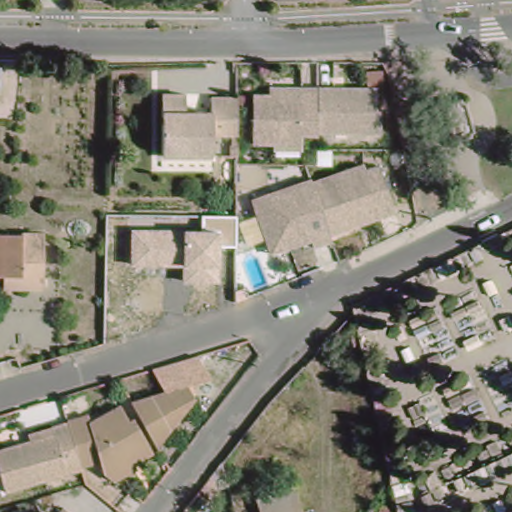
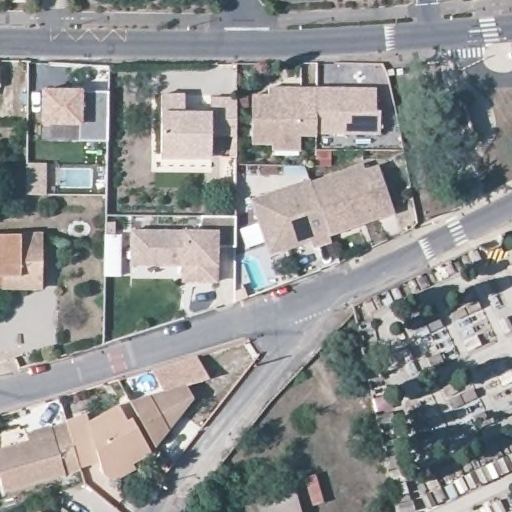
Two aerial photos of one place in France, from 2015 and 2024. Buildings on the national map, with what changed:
unchanged [(13,70),(13,94),(8,94),(8,101),(0,101),(0,70),(13,70)]
unchanged [(314,125),(314,127),(298,127),(298,142),(271,142),(271,136),(251,135),(251,87),(268,87),(269,80),(315,81),(314,125)]
unchanged [(370,81),(369,103),(374,103),(373,125),(314,125),(315,81),(370,81)]
new [(42,87),(59,87),(68,88),(110,89),(109,139),(77,138),(41,137),(42,120),(42,87)]
unchanged [(160,95),(183,95),(184,113),(208,113),(209,98),(236,100),(236,146),(229,145),(229,135),(210,135),(209,154),(209,159),(160,160),(160,152),(160,95)]
unchanged [(446,107),(447,102),(457,100),(460,102),(464,103),(472,131),(470,134),(468,138),(457,141),(455,140),(452,137),(444,110),(446,107)]
unchanged [(353,158),(355,164),(369,157),(388,201),(353,216),(351,211),(323,223),(304,179),(353,158)]
new [(28,163),(46,163),(45,194),(27,193),(28,163)]
unchanged [(301,171),(304,179),(323,223),(326,228),(308,236),(306,231),(268,248),(245,195),(301,171)]
unchanged [(200,229),(201,215),(236,216),(236,248),(219,247),(218,266),(218,281),(182,282),(182,267),(130,267),(131,229),(200,229)]
unchanged [(46,235),(46,289),(7,288),(0,288),(0,235),(46,235)]
new [(152,370),(196,356),(210,379),(185,386),(162,392),(152,370)]
unchanged [(129,402),(185,386),(190,405),(157,447),(129,402)]
unchanged [(0,482),(0,450),(27,442),(25,435),(89,415),(92,421),(117,407),(124,422),(131,418),(153,455),(132,465),(128,475),(113,481),(100,475),(93,467),(2,491),(0,482)]
unchanged [(292,485),(299,512),(258,512),(254,495),(292,485)]
unchanged [(62,508),(66,512),(59,512),(62,508)]
unchanged [(39,511),(40,512),(39,512),(39,511)]

